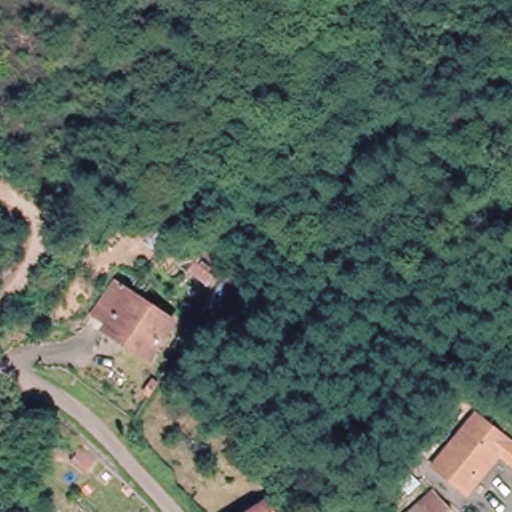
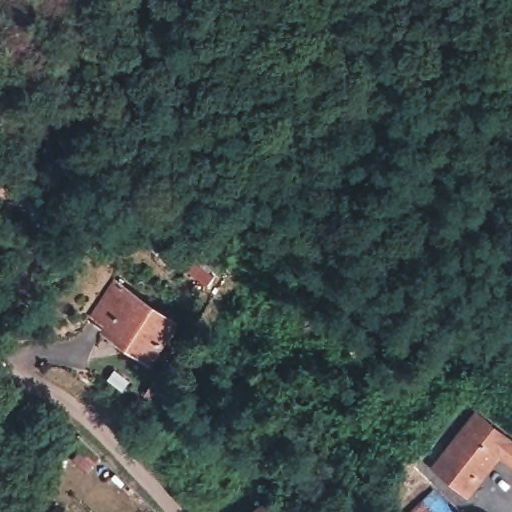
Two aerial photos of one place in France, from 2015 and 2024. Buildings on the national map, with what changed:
unchanged [(102,329),(106,323),(90,312),(110,286),(169,325),(145,359),(102,329)]
unchanged [(512,465),(499,456),(472,492),(436,461),(478,408),(512,433),(512,465)]
unchanged [(415,512),(435,493),(442,500),(456,512),(415,512)]
unchanged [(265,512),(254,512),(262,507),(265,512)]

